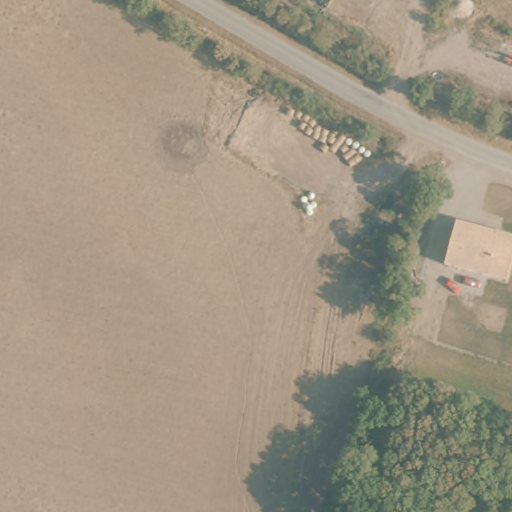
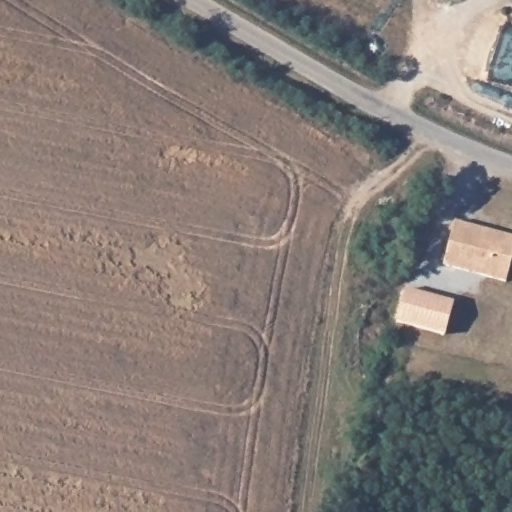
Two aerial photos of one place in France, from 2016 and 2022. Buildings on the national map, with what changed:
unchanged [(512,238),(512,258),(506,283),(443,269),(452,224),(512,238)]
new [(455,300),(444,335),(395,322),(404,287),(455,300)]

